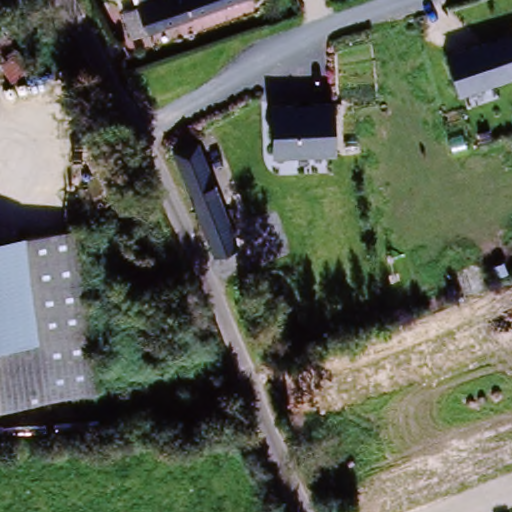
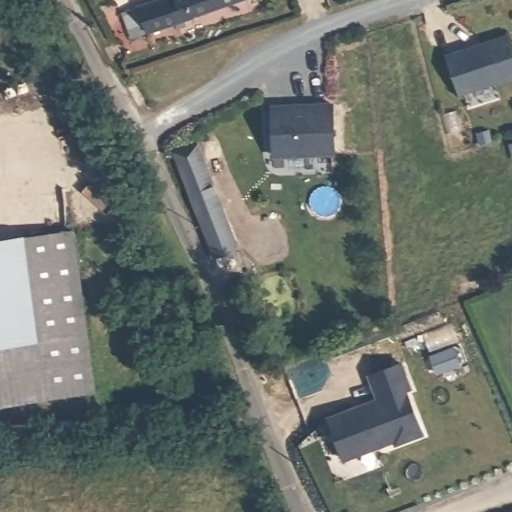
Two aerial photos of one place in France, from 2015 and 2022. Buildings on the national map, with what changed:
unchanged [(149,0),(240,0),(133,35),(125,8),(149,0)]
unchanged [(23,51),(29,61),(12,71),(0,54),(0,28),(5,25),(23,51)]
unchanged [(511,36),(512,39),(512,81),(465,96),(450,58),(511,36)]
unchanged [(333,112),(334,157),(270,157),(270,112),(333,112)]
unchanged [(197,142),(235,249),(210,258),(200,233),(172,149),(197,142)]
unchanged [(0,408),(0,248),(77,238),(99,395),(0,408)]
new [(380,404),(370,379),(402,368),(412,393),(407,395),(422,439),(396,449),(395,445),(344,464),(329,422),(380,404)]

